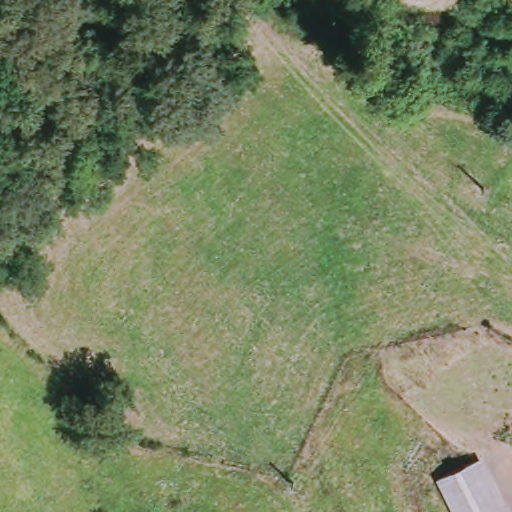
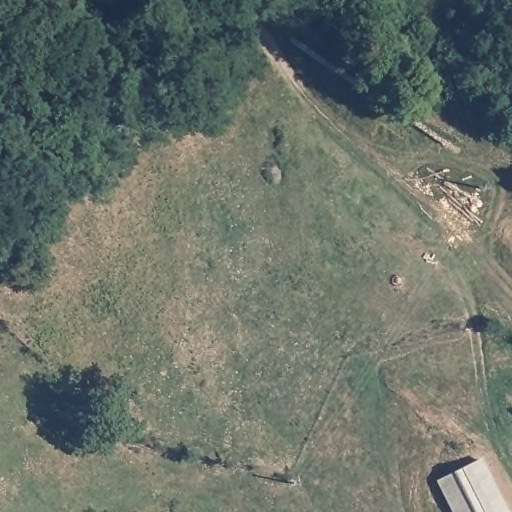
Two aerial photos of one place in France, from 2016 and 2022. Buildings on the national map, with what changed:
unchanged [(483,467),(507,512),(454,512),(442,489),(483,467)]

